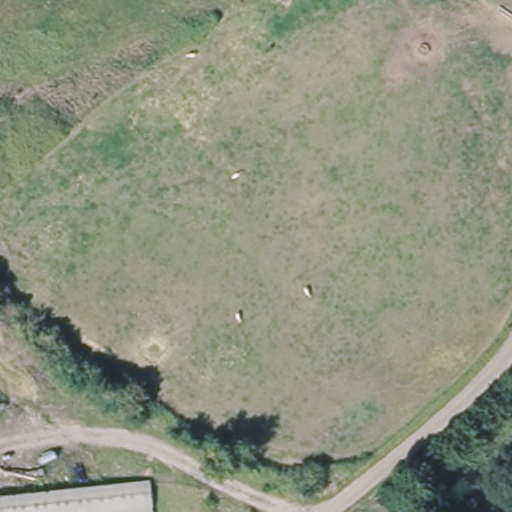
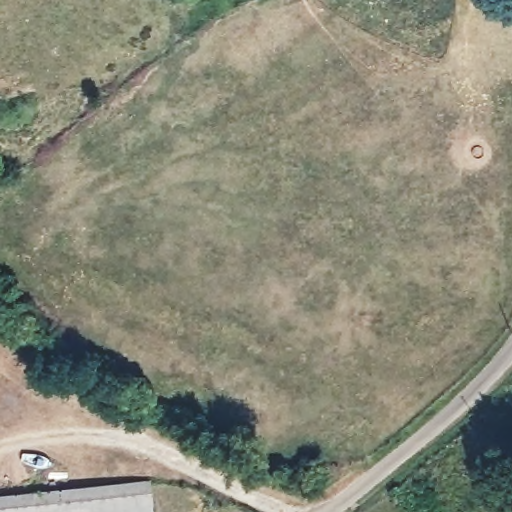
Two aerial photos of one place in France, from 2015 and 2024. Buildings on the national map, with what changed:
unchanged [(152,480),(153,512),(0,512),(0,490),(152,480)]

